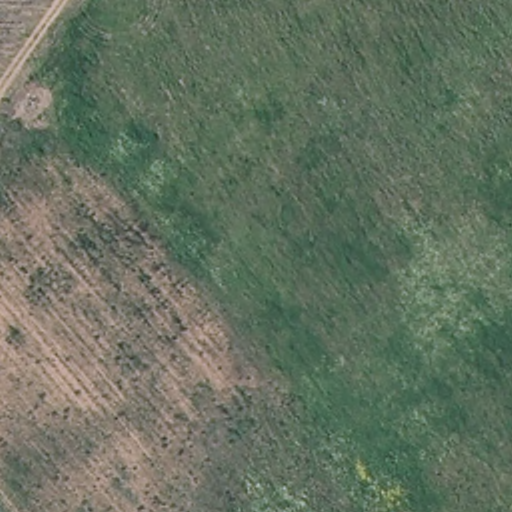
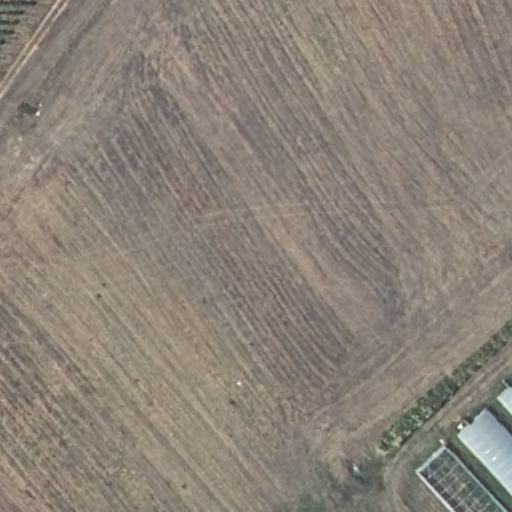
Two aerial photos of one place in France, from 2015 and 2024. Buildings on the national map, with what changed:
new [(512,381),(512,512),(455,512),(416,470),(512,381)]

